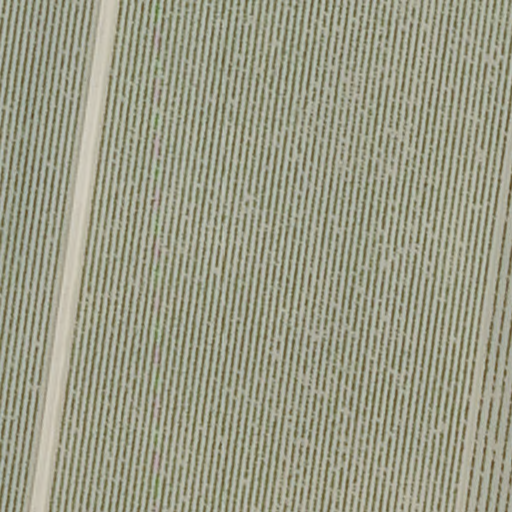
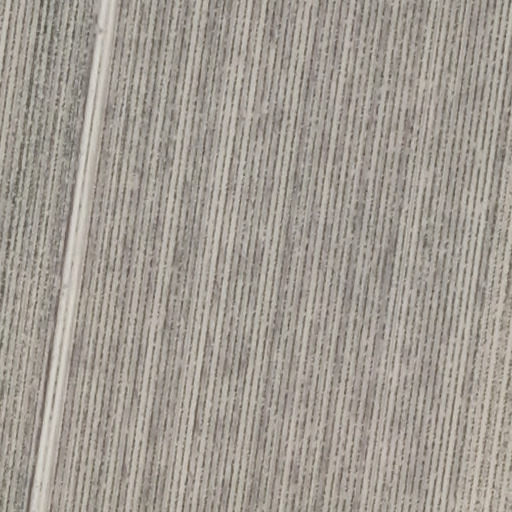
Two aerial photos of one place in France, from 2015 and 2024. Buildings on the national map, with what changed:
[]

